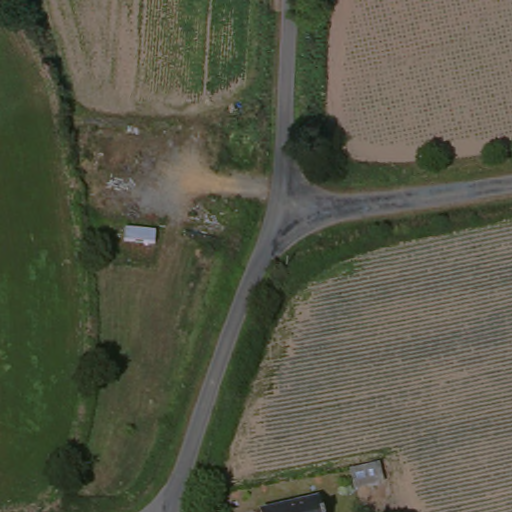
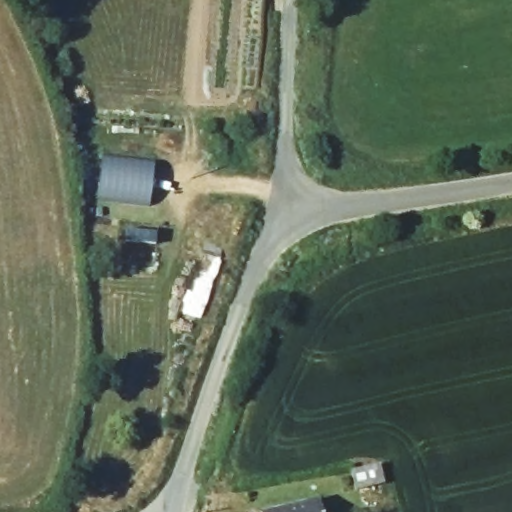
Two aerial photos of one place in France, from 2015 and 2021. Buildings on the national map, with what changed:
new [(98,196),(103,157),(154,162),(149,202),(98,196)]
unchanged [(347,462),(376,453),(384,475),(353,483),(347,462)]
demolished [(360,496),(389,487),(397,510),(390,512),(365,512),(360,496)]
unchanged [(317,503),(320,512),(291,512),(317,503)]

